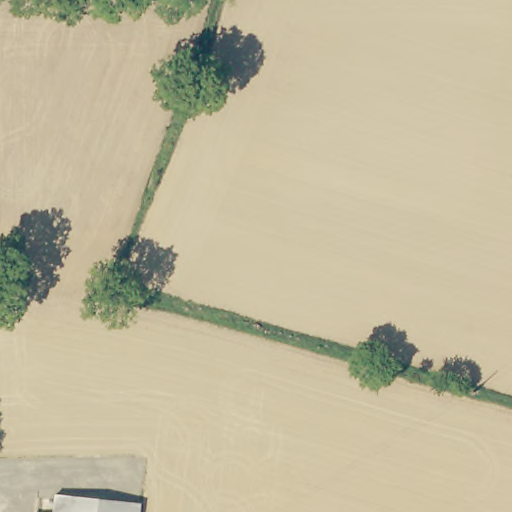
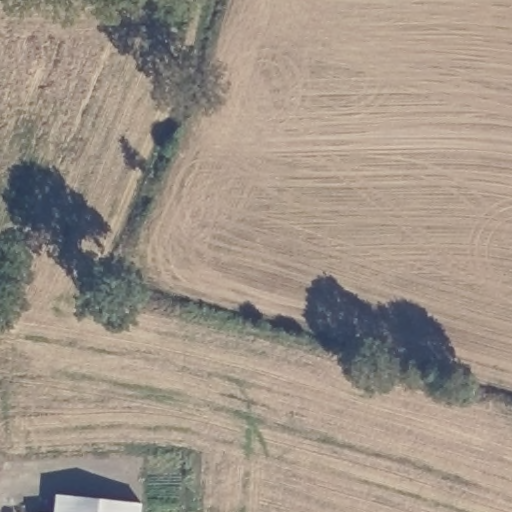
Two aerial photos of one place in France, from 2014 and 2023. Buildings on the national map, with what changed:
unchanged [(55,501),(55,498),(138,510),(138,512),(40,512),(42,499),(55,501)]

